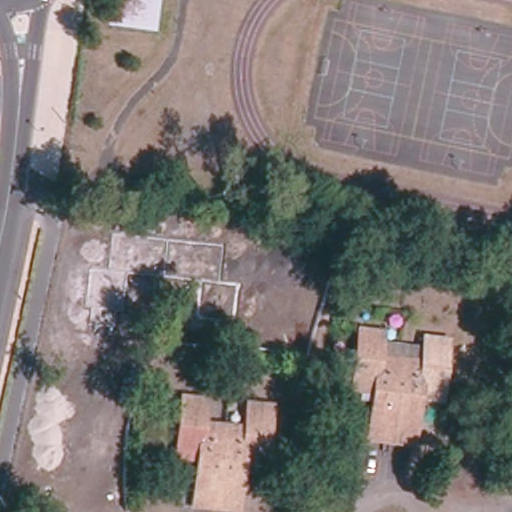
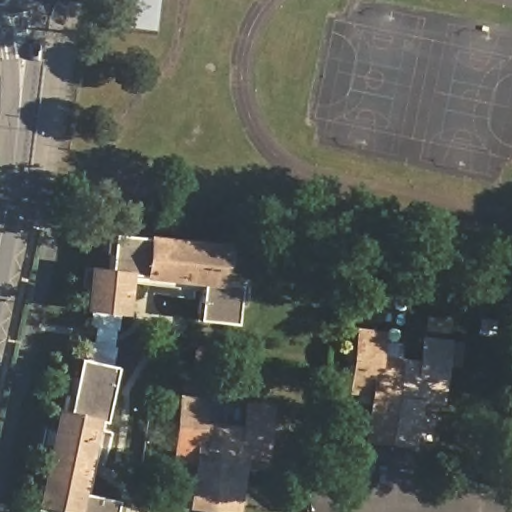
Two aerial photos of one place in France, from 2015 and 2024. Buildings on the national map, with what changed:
unchanged [(101,22),(103,0),(157,0),(153,28),(101,22)]
new [(114,233),(148,237),(148,233),(228,242),(223,281),(240,283),(237,323),(198,319),(201,284),(143,278),(145,275),(132,273),(132,269),(110,266),(114,233)]
new [(113,328),(112,345),(93,341),(96,326),(89,325),(92,310),(83,309),(88,264),(110,266),(132,269),(132,273),(128,313),(115,312),(118,329),(113,328)]
unchanged [(369,439),(374,392),(353,390),(360,332),(381,335),(377,359),(400,362),(390,441),(369,439)]
new [(98,416),(68,409),(79,357),(84,358),(88,340),(93,341),(112,345),(115,346),(111,364),(116,365),(104,422),(97,420),(98,416)]
unchanged [(400,362),(422,365),(425,341),(447,343),(440,399),(418,396),(412,443),(390,441),(400,362)]
unchanged [(195,506),(199,460),(177,458),(183,400),(204,402),(201,426),(223,428),(216,508),(195,506)]
unchanged [(246,431),(248,406),(269,408),(263,466),(242,464),(237,510),(216,508),(223,428),(246,431)]
new [(78,512),(70,512),(35,504),(55,407),(68,409),(98,416),(97,420),(83,492),(78,512)]
new [(114,512),(78,512),(83,492),(117,500),(114,512)]

